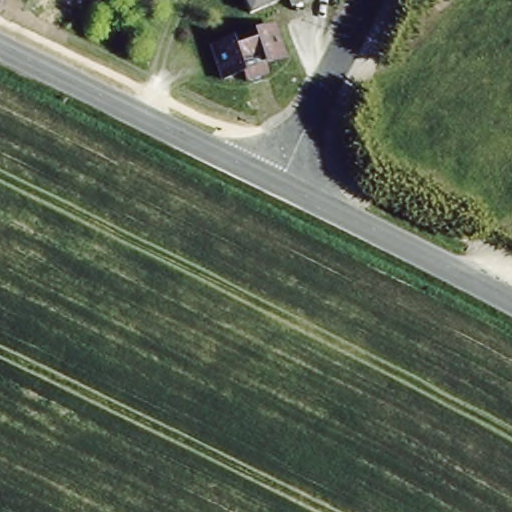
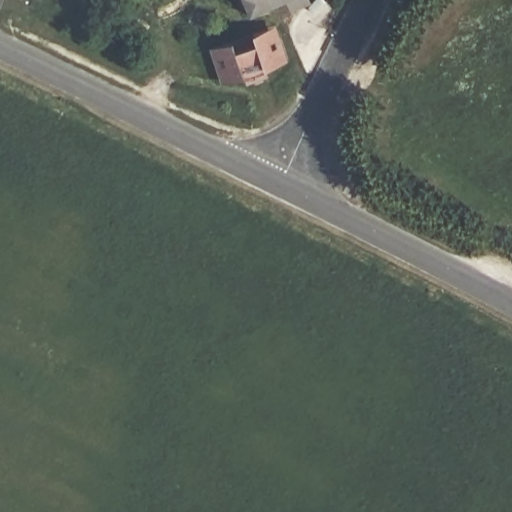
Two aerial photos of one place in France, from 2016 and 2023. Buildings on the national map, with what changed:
unchanged [(242,0),(288,0),(249,17),(242,0)]
unchanged [(273,72),(251,80),(248,71),(226,78),(217,53),(225,41),(270,26),(283,31),(292,56),(270,64),(273,72)]

